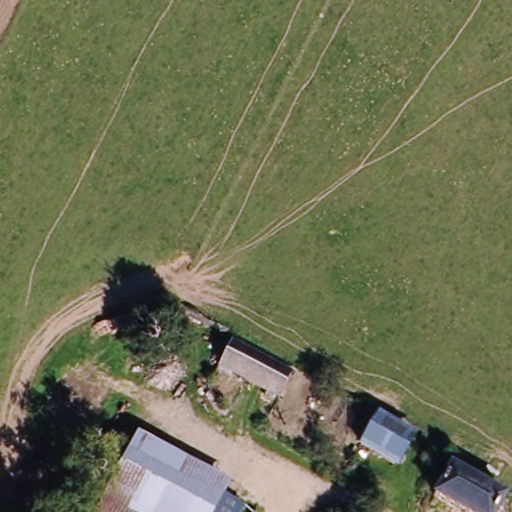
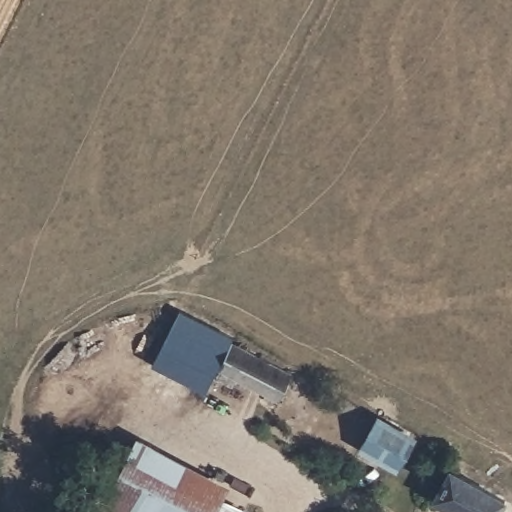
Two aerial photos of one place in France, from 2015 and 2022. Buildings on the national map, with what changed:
new [(235,339),(231,346),(240,350),(225,375),(249,389),(246,396),(232,388),(227,396),(208,387),(205,392),(152,365),(179,311),(235,339)]
unchanged [(290,380),(275,405),(225,375),(240,350),(290,380)]
unchanged [(408,435),(411,437),(392,467),(360,449),(378,418),(408,435)]
unchanged [(136,438),(227,488),(225,503),(236,510),(236,512),(98,512),(110,489),(89,481),(111,442),(133,447),(136,438)]
unchanged [(496,512),(453,512),(433,500),(450,471),(502,500),(496,512)]

